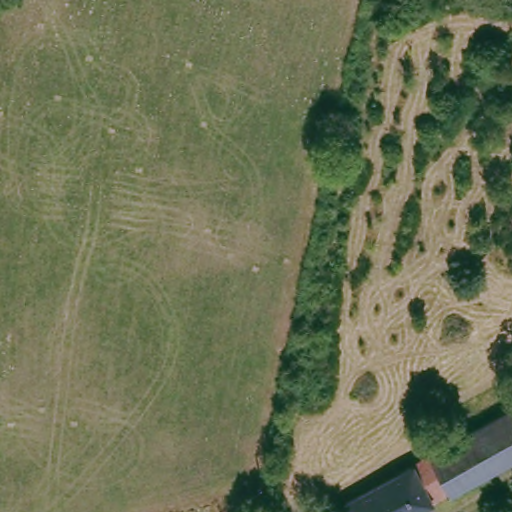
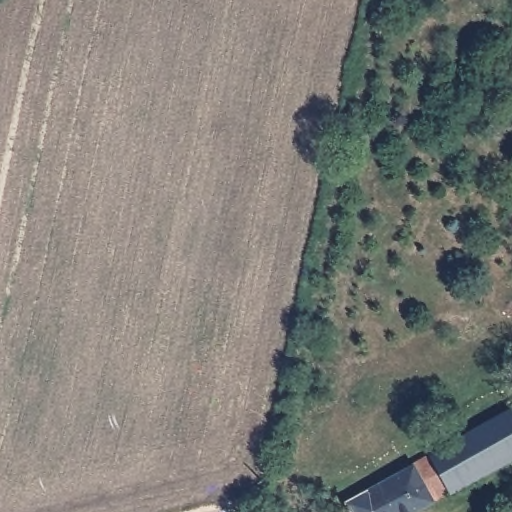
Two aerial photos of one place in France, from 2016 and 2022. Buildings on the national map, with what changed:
unchanged [(512,402),(512,453),(410,512),(338,512),(335,506),(512,402)]

